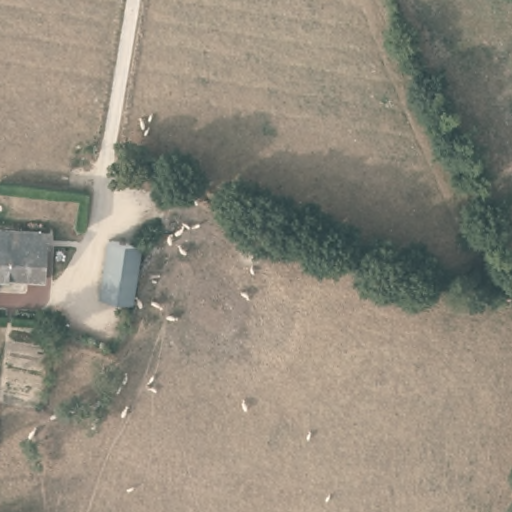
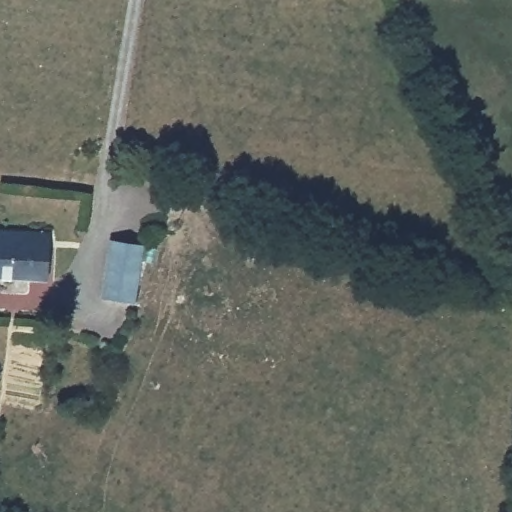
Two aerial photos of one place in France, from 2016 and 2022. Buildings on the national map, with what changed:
unchanged [(0,279),(0,233),(15,234),(12,280),(0,279)]
unchanged [(12,280),(15,234),(52,235),(48,282),(12,280)]
unchanged [(131,303),(102,299),(113,242),(141,248),(131,303)]

